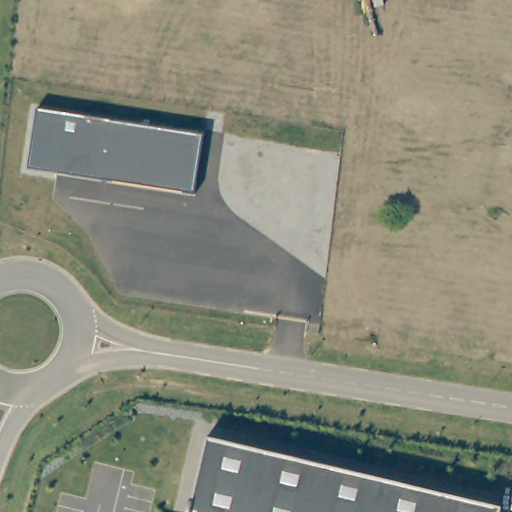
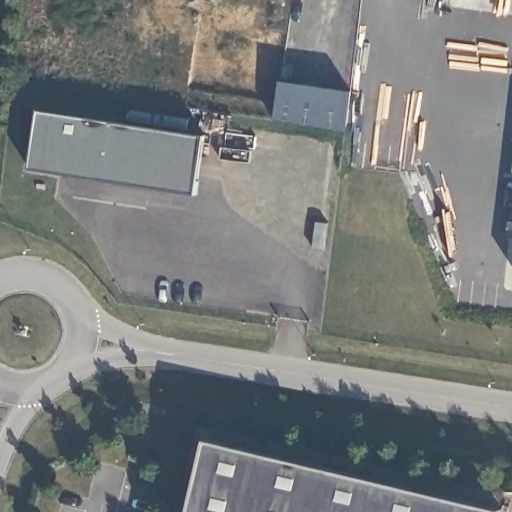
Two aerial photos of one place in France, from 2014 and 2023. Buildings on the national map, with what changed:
new [(272,119),(276,80),(348,91),(345,130),(272,119)]
unchanged [(202,138),(193,194),(29,170),(37,110),(202,138)]
unchanged [(499,510),(499,512),(190,512),(206,440),(499,510)]

